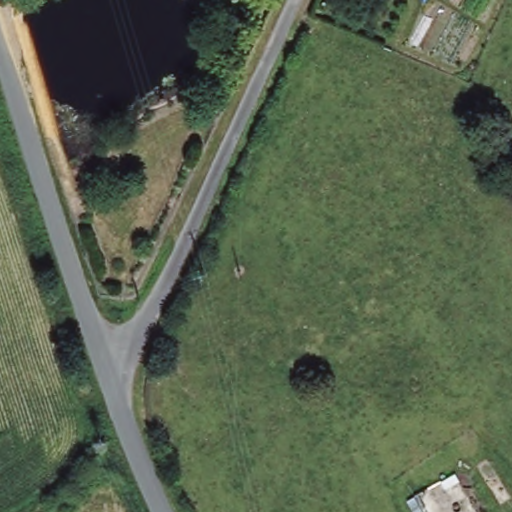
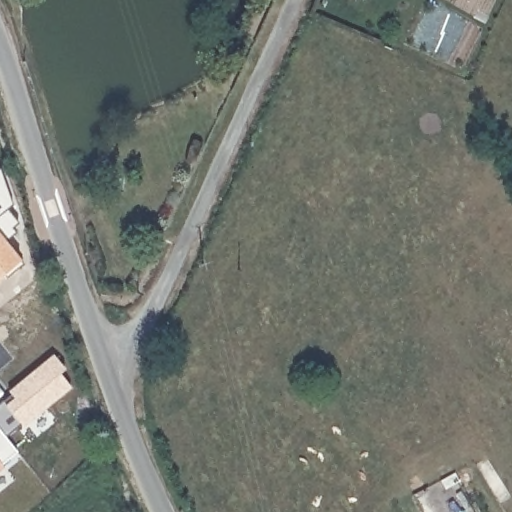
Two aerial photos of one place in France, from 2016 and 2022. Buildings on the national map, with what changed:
new [(12,206),(7,210),(19,225),(12,230),(16,234),(5,243),(22,266),(6,280),(2,276),(0,278),(0,170),(12,206)]
new [(9,392),(54,355),(65,370),(59,374),(71,388),(23,427),(21,425),(5,438),(0,432),(0,403),(2,401),(11,395),(9,392)]
new [(5,438),(17,452),(2,465),(4,467),(0,470),(0,432),(5,438)]

